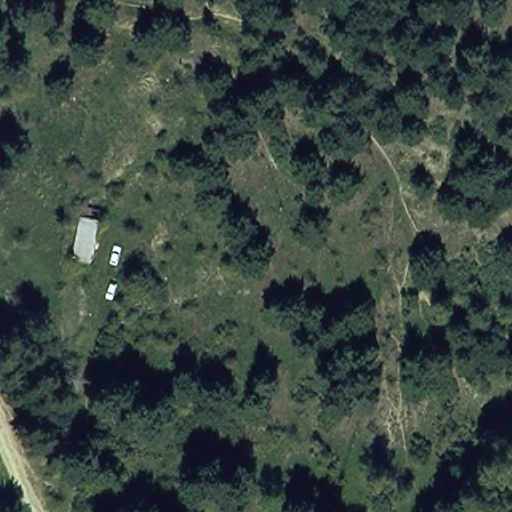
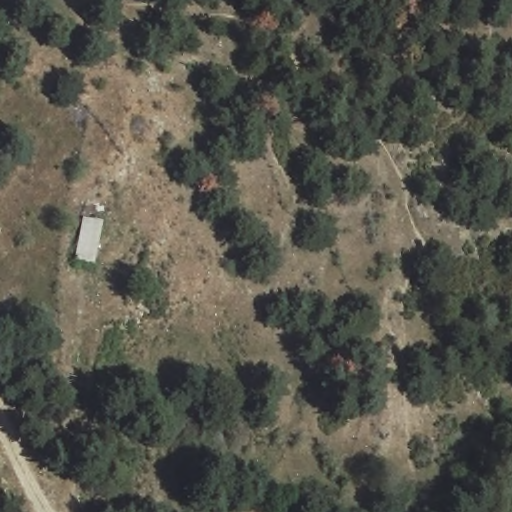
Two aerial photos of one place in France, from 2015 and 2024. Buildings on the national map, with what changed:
unchanged [(73,262),(80,216),(102,219),(95,265),(73,262)]

